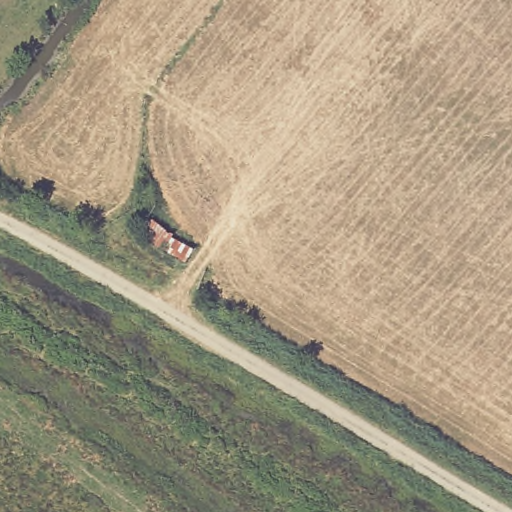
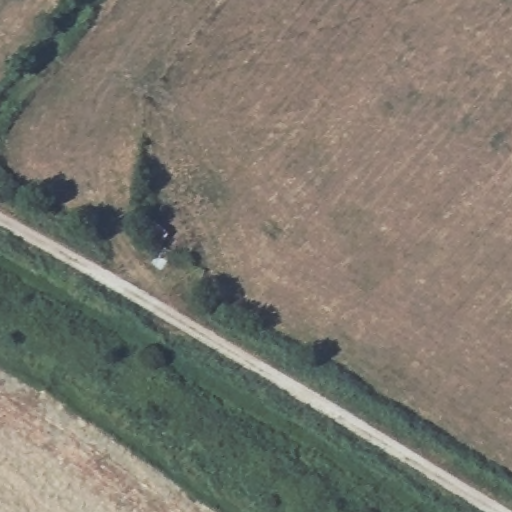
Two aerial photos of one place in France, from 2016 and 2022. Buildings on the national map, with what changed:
unchanged [(146,215),(199,247),(187,265),(135,238),(146,215)]

